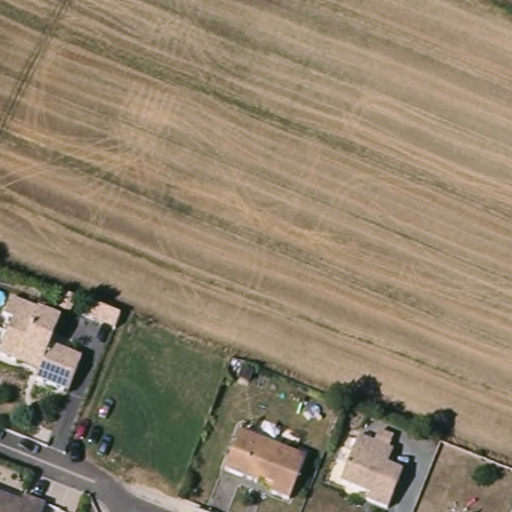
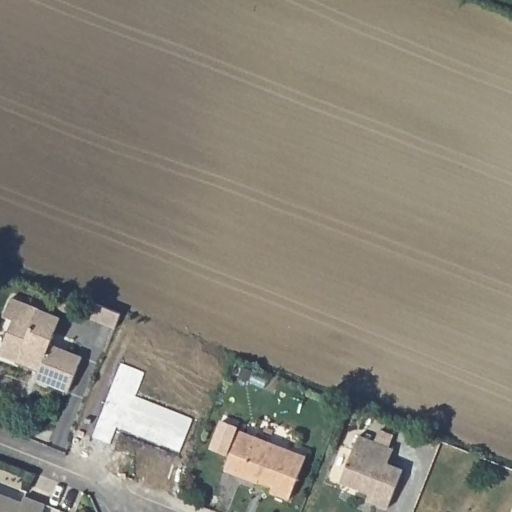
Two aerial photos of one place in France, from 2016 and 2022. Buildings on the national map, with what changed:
unchanged [(10,298),(58,317),(49,344),(79,355),(66,391),(34,377),(35,374),(38,367),(16,356),(13,364),(0,358),(0,347),(9,322),(2,318),(10,298)]
unchanged [(374,431),(392,439),(388,448),(390,449),(385,465),(401,471),(384,512),(364,503),(367,496),(338,484),(358,435),(370,439),(374,431)]
unchanged [(303,458),(286,501),(267,493),(271,485),(258,479),(255,486),(224,472),(240,433),(303,458)]
unchanged [(24,497),(45,505),(42,512),(0,512),(0,494),(22,503),(24,497)]

